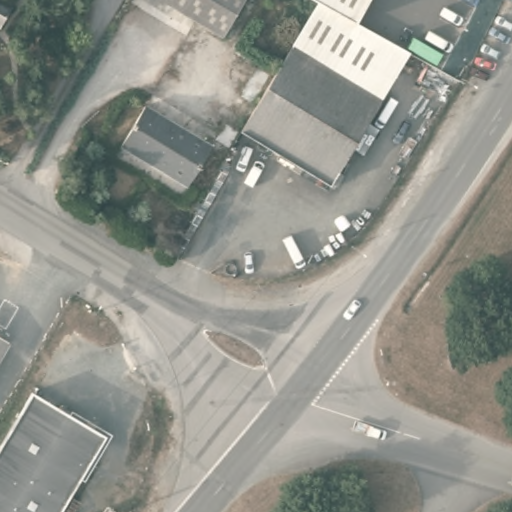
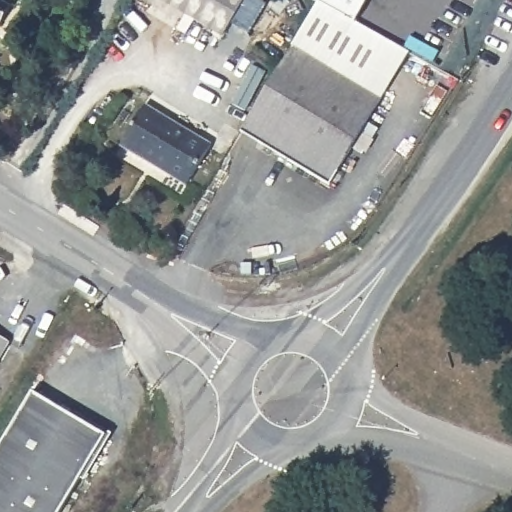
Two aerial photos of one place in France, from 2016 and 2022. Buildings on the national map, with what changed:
unchanged [(0,22),(0,0),(2,0),(14,7),(2,24),(0,22)]
unchanged [(163,0),(244,0),(222,36),(163,0)]
unchanged [(312,0),(370,0),(355,24),(315,1),(312,0)]
unchanged [(363,123),(327,184),(239,131),(262,90),(312,6),(315,1),(355,24),(406,52),(363,123)]
unchanged [(118,143),(144,103),(208,145),(183,186),(118,143)]
unchanged [(0,346),(0,334),(5,337),(0,346)]
unchanged [(56,512),(0,512),(0,439),(30,389),(104,433),(56,512)]

